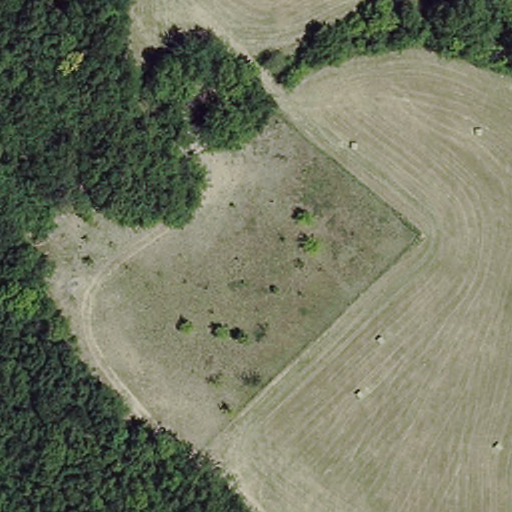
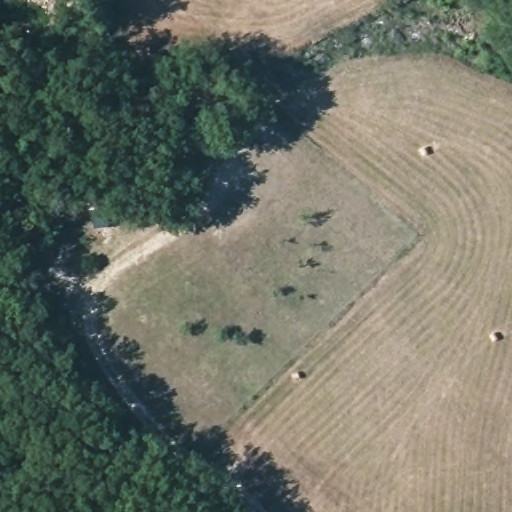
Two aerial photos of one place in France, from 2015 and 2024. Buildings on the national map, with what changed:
unchanged [(190,131),(195,128),(212,147),(183,174),(165,153),(190,131)]

